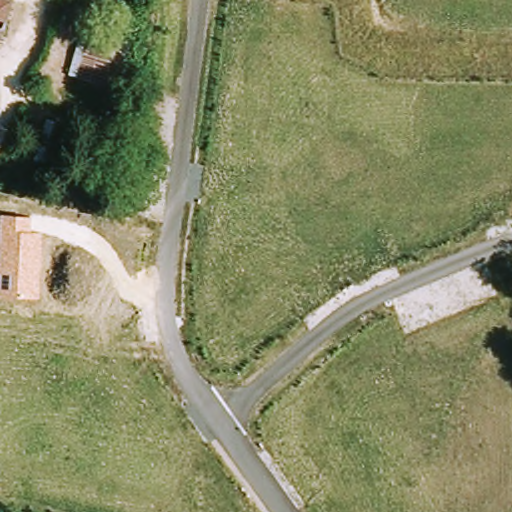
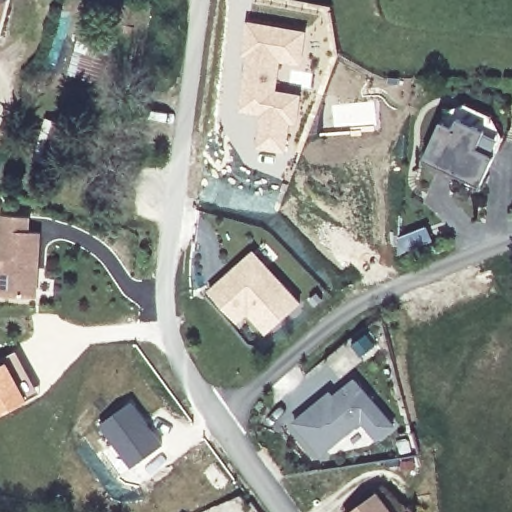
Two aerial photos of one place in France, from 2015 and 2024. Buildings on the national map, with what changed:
unchanged [(0,33),(0,0),(13,0),(4,34),(0,33)]
new [(245,19),(309,29),(305,67),(281,62),(277,87),(302,92),(287,154),(252,149),(258,117),(236,113),(245,19)]
new [(494,116),(501,131),(502,139),(494,156),(480,184),(425,158),(442,120),(448,110),(464,103),(494,116)]
unchanged [(42,232),(38,299),(0,296),(0,230),(1,214),(31,216),(30,232),(42,232)]
new [(265,330),(244,306),(232,317),(208,289),(253,247),(299,299),(265,330)]
new [(378,441),(362,423),(321,459),(291,422),(332,391),(335,395),(357,377),(396,426),(378,441)]
new [(130,401),(163,443),(128,469),(95,427),(130,401)]
new [(350,512),(379,491),(395,512),(350,512)]

